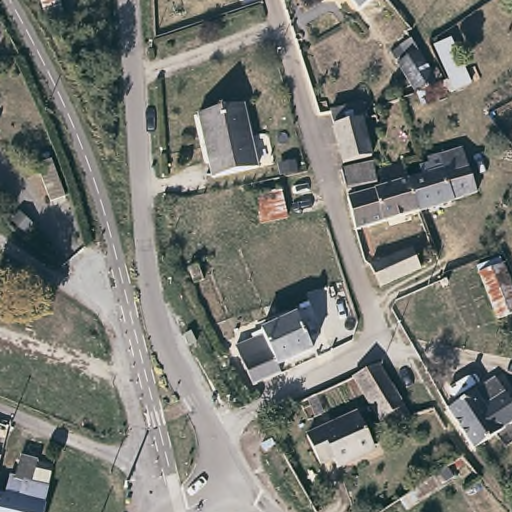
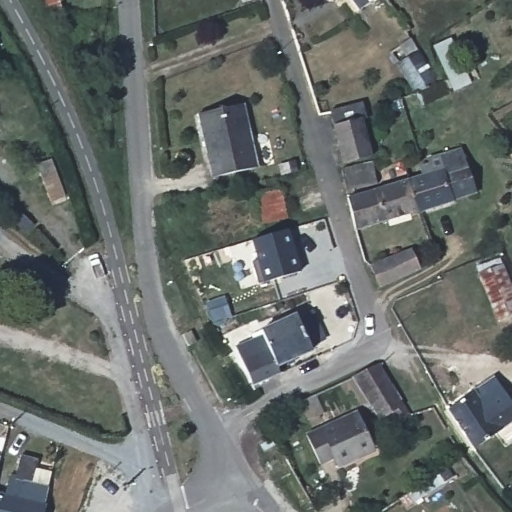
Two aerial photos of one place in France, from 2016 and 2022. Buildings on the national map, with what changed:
unchanged [(45,16),(41,0),(58,0),(61,12),(45,16)]
unchanged [(352,0),(371,0),(358,9),(352,0)]
unchanged [(409,57),(418,48),(438,84),(448,80),(431,45),(453,37),(473,85),(421,106),(396,61),(409,57)]
unchanged [(258,166),(212,177),(199,113),(244,103),(258,166)]
unchanged [(367,118),(364,119),(373,156),(345,163),(332,112),(363,104),(367,118)]
unchanged [(410,178),(432,171),(431,159),(462,150),(478,193),(420,211),(410,178)]
unchanged [(50,204),(40,173),(38,166),(52,161),(55,168),(65,199),(50,204)]
unchanged [(375,182),(348,188),(345,170),(371,164),(375,182)]
unchanged [(357,231),(348,197),(410,178),(420,211),(357,231)]
unchanged [(287,217),(261,224),(255,194),(281,189),(287,217)]
unchanged [(34,223),(26,232),(12,221),(20,212),(34,223)]
new [(260,284),(253,261),(259,259),(253,239),(290,229),(301,270),(260,284)]
unchanged [(421,269),(382,288),(370,265),(411,249),(421,269)]
demolished [(204,279),(194,283),(189,268),(199,265),(204,279)]
unchanged [(502,266),(512,291),(512,314),(497,319),(488,296),(480,274),(502,266)]
unchanged [(312,348),(277,365),(281,373),(254,385),(236,347),(264,334),(262,329),(296,314),(312,348)]
unchanged [(410,414),(411,415),(400,424),(393,414),(380,420),(353,375),(380,364),(410,414)]
unchanged [(512,423),(476,449),(475,449),(450,411),(495,379),(512,404),(512,423)]
unchanged [(375,451),(338,467),(335,459),(321,465),(307,435),(355,412),(375,451)]
unchanged [(6,494),(10,476),(15,477),(20,457),(37,461),(35,470),(50,474),(43,502),(45,503),(43,512),(0,512),(0,493),(6,494)]
unchanged [(512,486),(512,493),(508,490),(512,486)]
unchanged [(400,512),(382,512),(394,503),(400,512)]

